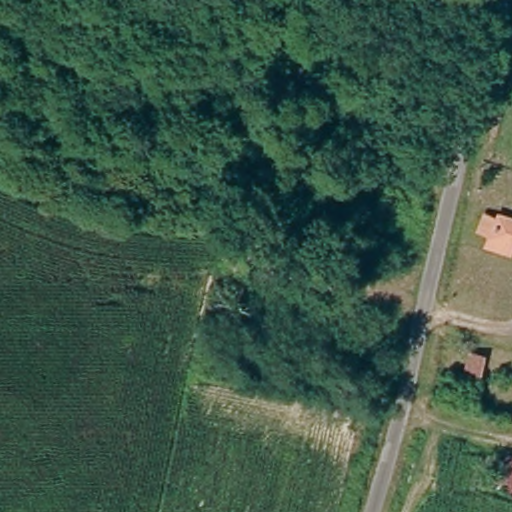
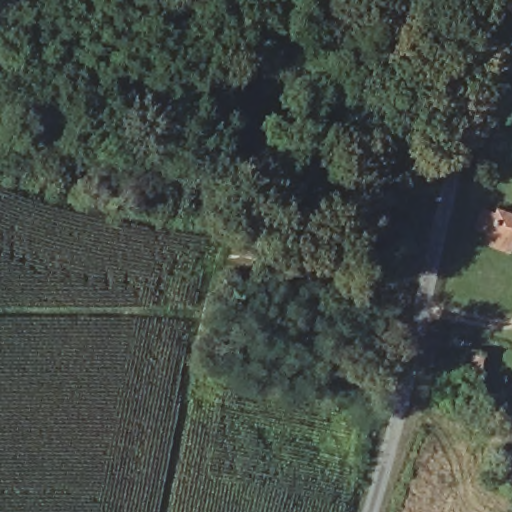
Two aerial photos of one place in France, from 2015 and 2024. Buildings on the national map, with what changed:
unchanged [(508,254),(484,250),(488,231),(474,229),(478,210),(512,216),(512,233),(508,254)]
unchanged [(512,454),(512,490),(492,485),(499,449),(512,454)]

